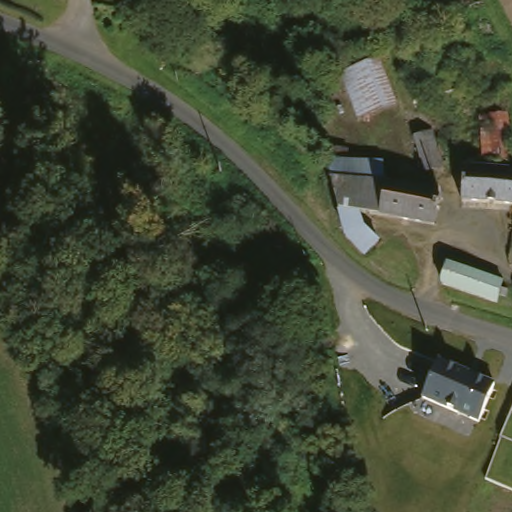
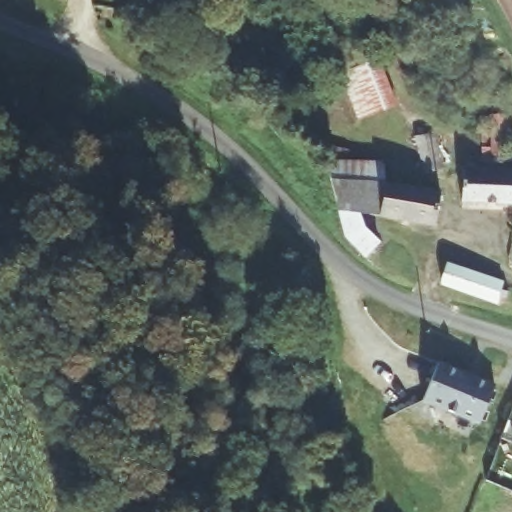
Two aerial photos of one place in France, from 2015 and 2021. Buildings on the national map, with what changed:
unchanged [(419,105),(409,72),(481,51),(491,82),(419,105)]
unchanged [(379,60),(396,106),(359,120),(342,74),(378,60),(379,60)]
unchanged [(489,165),(484,92),(511,90),(512,102),(512,162),(489,165)]
unchanged [(389,164),(391,183),(445,192),(439,226),(364,215),(369,228),(384,243),(370,258),(351,237),(340,195),(336,181),(333,162),(389,164)]
unchanged [(509,170),(512,170),(512,205),(467,203),(468,169),(509,170)]
unchanged [(498,305),(441,285),(447,264),(503,283),(498,305)]
unchanged [(439,362),(494,385),(477,423),(422,401),(439,362)]

